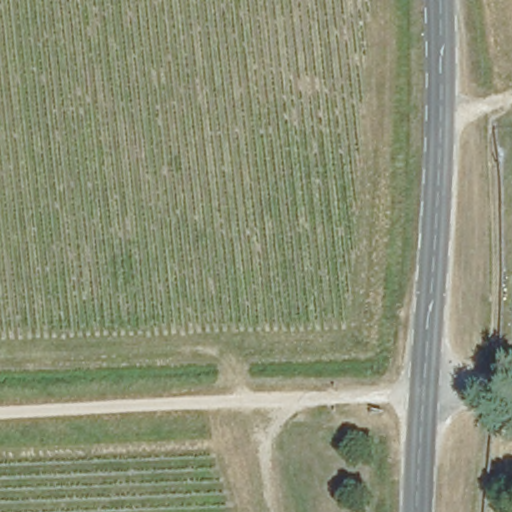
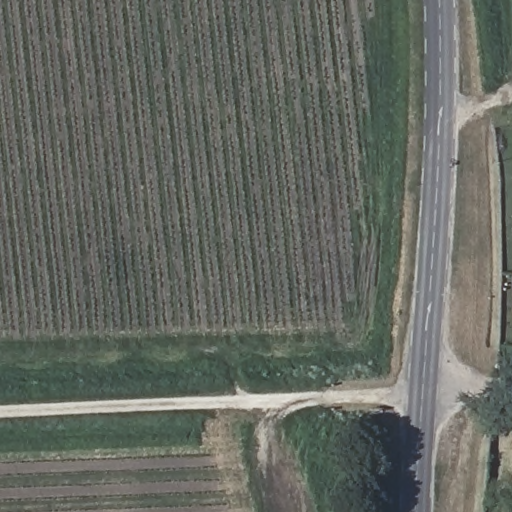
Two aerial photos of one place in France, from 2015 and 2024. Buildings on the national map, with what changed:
[]

